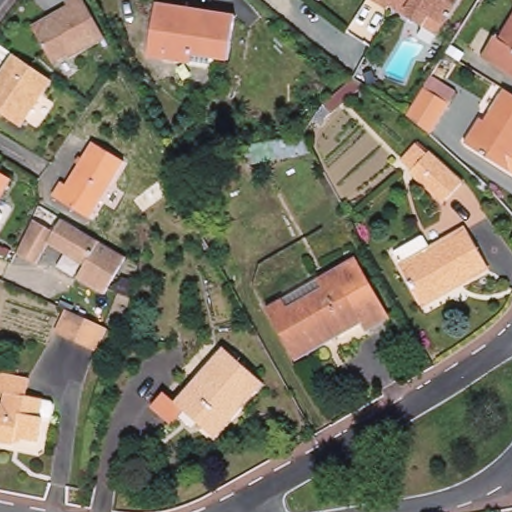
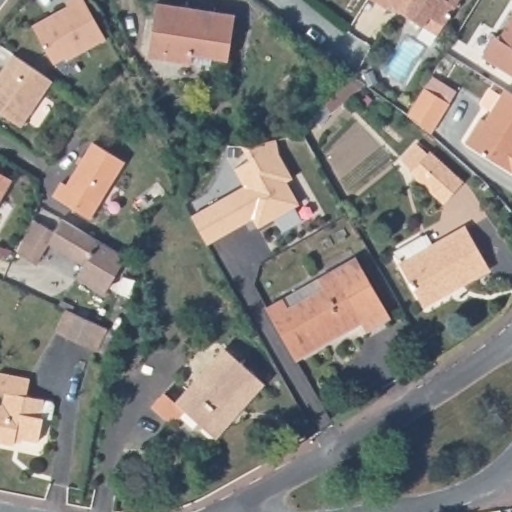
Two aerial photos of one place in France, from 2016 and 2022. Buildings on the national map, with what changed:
unchanged [(62,59),(61,56),(47,63),(26,24),(62,6),(60,1),(62,0),(78,0),(99,40),(62,59)]
unchanged [(455,7),(446,23),(437,34),(423,27),(402,13),(394,14),(371,0),(458,0),(455,7)]
unchanged [(165,58),(166,50),(148,47),(155,2),(234,13),(227,59),(212,57),(211,65),(165,58)]
unchanged [(498,39),(512,17),(512,79),(479,58),(493,36),(498,39)]
unchanged [(2,66),(11,54),(48,82),(16,126),(0,114),(0,75),(5,69),(2,66)]
unchanged [(437,76),(451,84),(435,109),(440,112),(432,125),(418,114),(415,111),(430,86),(437,76)]
unchanged [(487,120),(507,91),(512,95),(512,172),(467,142),(482,117),(487,120)]
new [(190,215),(243,186),(233,169),(249,160),(241,146),(268,133),(292,177),(286,180),(299,203),(257,227),(252,219),(207,245),(190,215)]
demolished [(287,165),(247,171),(242,148),(304,139),(317,166),(293,176),(287,165)]
unchanged [(124,162),(90,219),(53,196),(62,182),(67,184),(92,144),(124,162)]
unchanged [(430,149),(463,180),(442,203),(409,171),(430,149)]
demolished [(174,186),(146,212),(135,201),(162,175),(174,186)]
unchanged [(0,203),(0,177),(12,183),(0,203)]
unchanged [(128,255),(109,293),(79,278),(86,265),(51,245),(40,261),(19,246),(35,219),(55,228),(62,217),(128,255)]
unchanged [(420,234),(427,247),(462,227),(484,262),(448,283),(450,286),(421,303),(392,251),(420,234)]
unchanged [(388,321),(367,333),(363,326),(296,363),(267,311),(356,261),(388,321)]
unchanged [(106,330),(94,353),(53,333),(65,309),(106,330)]
unchanged [(154,404),(168,388),(181,401),(230,350),(265,385),(234,417),(231,415),(212,434),(185,407),(171,421),(154,404)]
unchanged [(6,392),(0,391),(0,373),(29,379),(25,396),(44,400),(41,415),(45,416),(40,441),(16,436),(14,443),(0,440),(0,405),(5,402),(6,392)]

